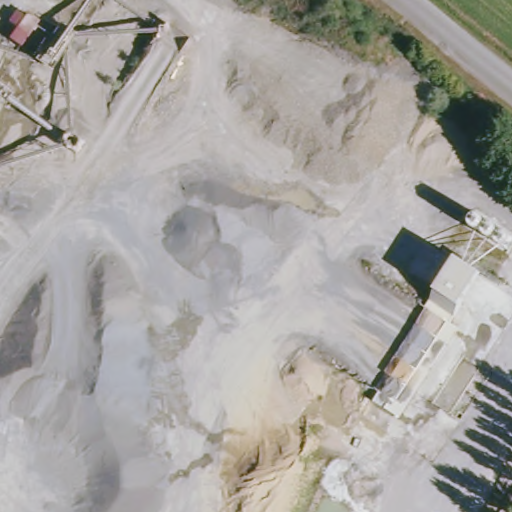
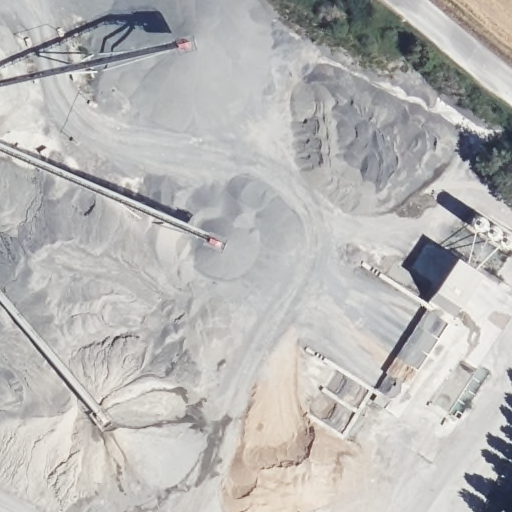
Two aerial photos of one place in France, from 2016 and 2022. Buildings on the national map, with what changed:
unchanged [(479,273),(461,302),(436,287),(453,258),(479,273)]
unchanged [(432,335),(392,394),(372,380),(414,320),(432,335)]

